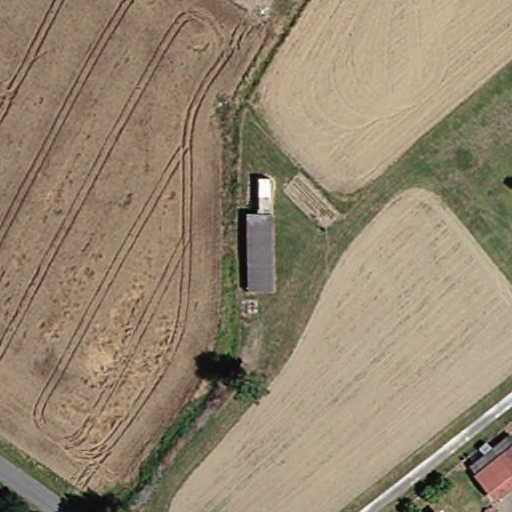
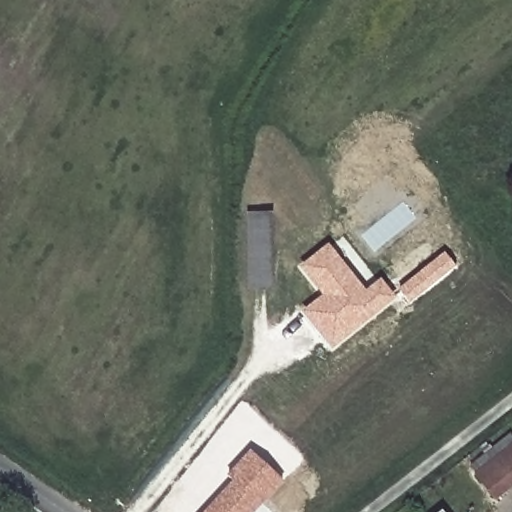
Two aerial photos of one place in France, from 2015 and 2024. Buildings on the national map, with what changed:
unchanged [(277,290),(255,291),(253,213),(277,213),(277,290)]
new [(302,311),(322,296),(300,267),(329,244),(366,291),(381,279),(398,298),(333,349),(302,311)]
new [(399,289),(445,252),(456,266),(411,303),(399,289)]
unchanged [(264,298),(264,313),(247,313),(247,298),(264,298)]
unchanged [(471,468),(483,458),(512,435),(512,487),(496,499),(471,468)]
new [(227,475),(250,450),(283,481),(255,512),(205,512),(233,481),(227,475)]

